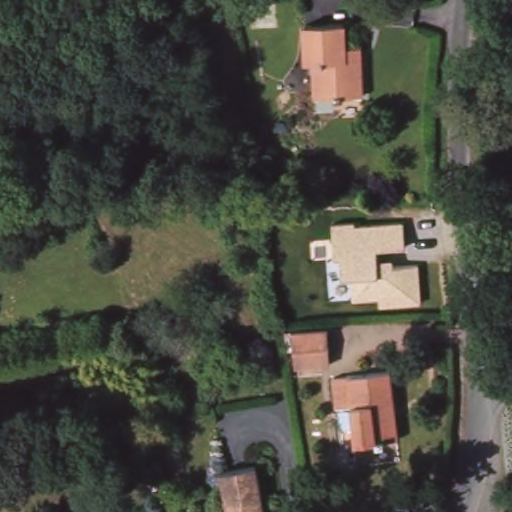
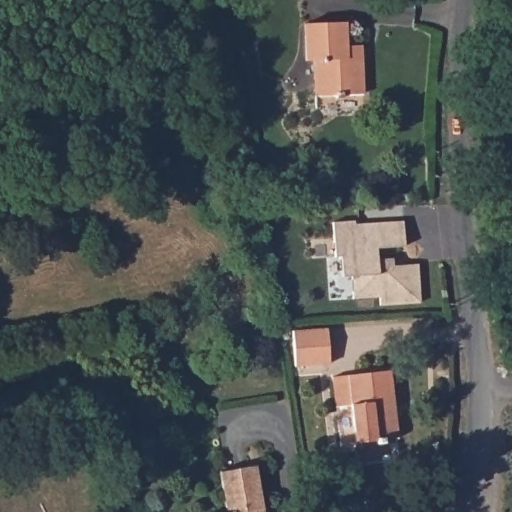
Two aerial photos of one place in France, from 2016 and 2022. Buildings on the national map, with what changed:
unchanged [(366,89),(321,91),(319,56),(311,56),(309,19),(350,17),(350,41),(365,40),(366,89)]
unchanged [(380,307),(380,297),(354,298),(352,277),(341,277),(341,258),(335,258),(333,222),(355,221),(356,226),(402,221),(405,246),(377,247),(378,260),(393,259),(393,267),(419,265),(422,302),(380,307)]
unchanged [(335,325),(337,360),(302,362),(300,327),(335,325)]
unchanged [(399,438),(357,444),(351,407),(337,408),(334,377),(392,371),(399,438)]
unchanged [(261,467),(270,510),(263,511),(263,512),(234,512),(226,472),(261,467)]

